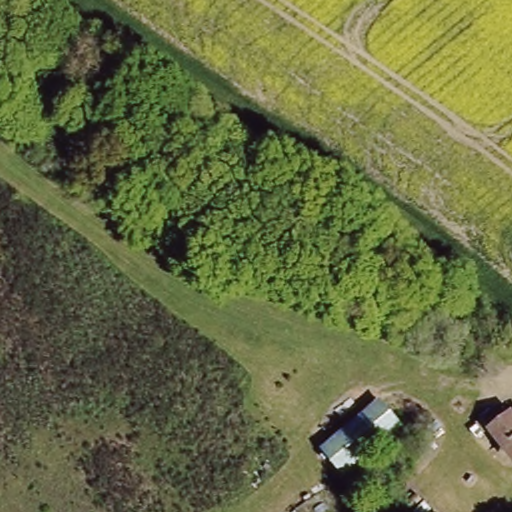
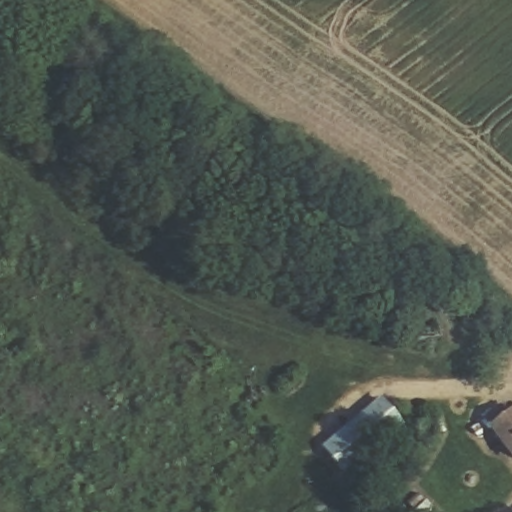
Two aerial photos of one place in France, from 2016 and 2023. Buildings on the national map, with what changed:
unchanged [(380,399),(403,426),(343,476),(320,449),(380,399)]
unchanged [(488,434),(485,437),(475,424),(483,417),(490,427),(512,409),(512,410),(512,462),(488,434)]

